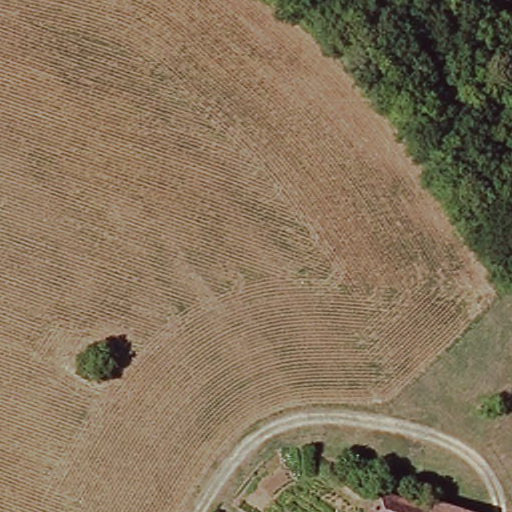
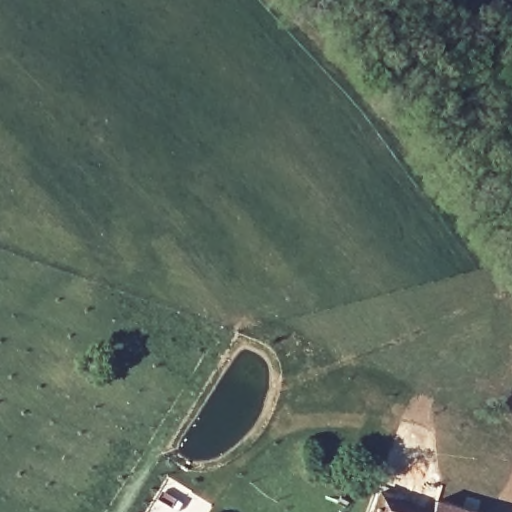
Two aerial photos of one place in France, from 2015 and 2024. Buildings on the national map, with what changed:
unchanged [(426,510),(429,503),(454,512),(374,512),(383,491),(426,510)]

